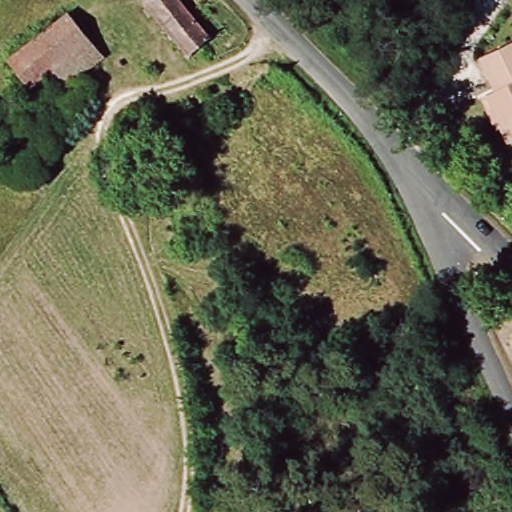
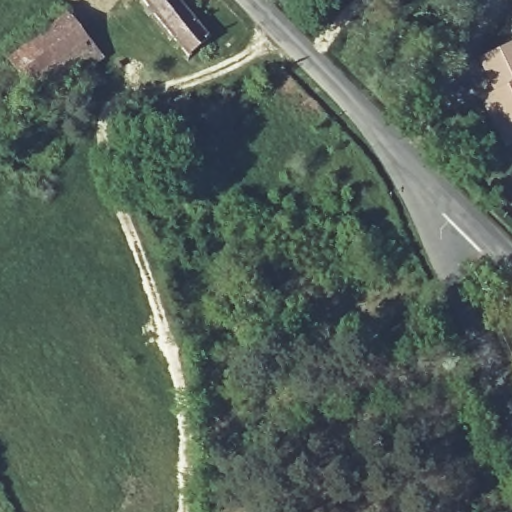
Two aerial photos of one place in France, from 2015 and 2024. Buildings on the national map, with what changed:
unchanged [(187,57),(140,4),(145,0),(172,0),(207,41),(187,57)]
unchanged [(62,20),(96,62),(52,99),(39,81),(24,91),(4,66),(62,20)]
unchanged [(490,100),(492,99),(481,66),(512,54),(512,144),(500,148),(496,132),(488,134),(478,104),(490,100)]

